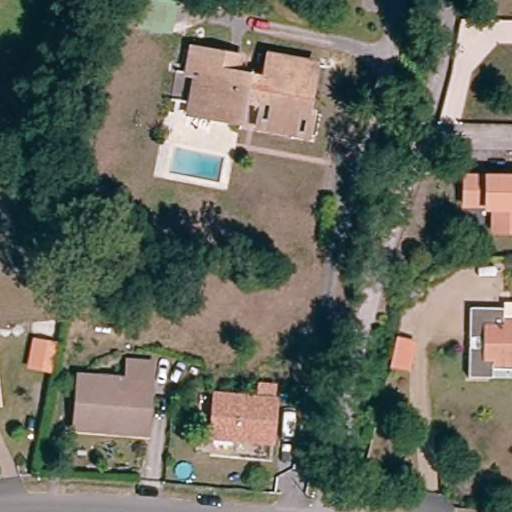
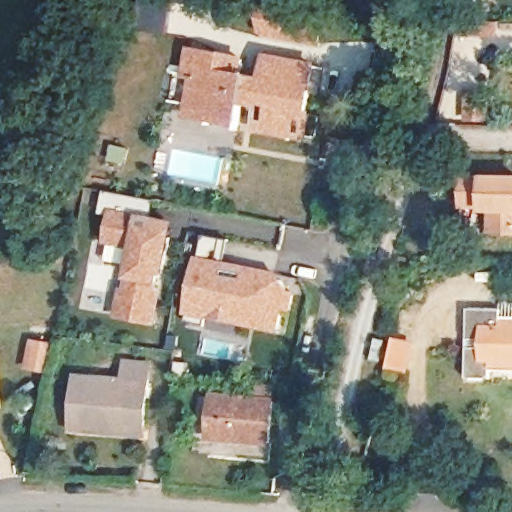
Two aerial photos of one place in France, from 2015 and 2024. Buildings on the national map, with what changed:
unchanged [(292,136),(263,130),(252,127),(257,110),(241,106),(235,130),(215,126),(191,121),(194,109),(201,78),(198,77),(189,75),(194,52),(205,55),(245,63),(241,82),(264,85),(272,58),(315,67),(309,90),(304,112),(316,115),(306,140),(292,136)]
unchanged [(490,235),(490,213),(483,212),(483,209),(461,210),(462,175),(484,175),(512,175),(512,236),(490,235)]
new [(115,318),(122,286),(126,287),(129,278),(133,247),(106,242),(111,216),(102,215),(107,191),(156,201),(153,216),(179,221),(168,276),(164,275),(163,285),(166,288),(157,325),(115,318)]
new [(198,256),(202,257),(206,235),(230,240),(226,261),(278,271),(293,293),(297,293),(294,311),(286,310),(282,335),(208,320),(207,325),(189,321),(190,315),(187,315),(198,256)]
unchanged [(504,325),(512,325),(512,374),(490,372),(489,386),(462,383),(467,358),(486,357),(487,348),(470,346),(471,315),(503,317),(504,325)]
unchanged [(417,351),(410,378),(393,374),(400,347),(417,351)]
unchanged [(59,355),(57,365),(54,382),(54,383),(37,380),(42,352),(59,355)]
unchanged [(0,367),(0,366),(1,416),(0,416),(0,367)]
unchanged [(94,444),(71,443),(76,387),(120,390),(129,368),(149,370),(142,435),(140,445),(94,444)]
unchanged [(256,395),(257,383),(276,385),(274,446),(208,439),(212,390),(256,395)]

